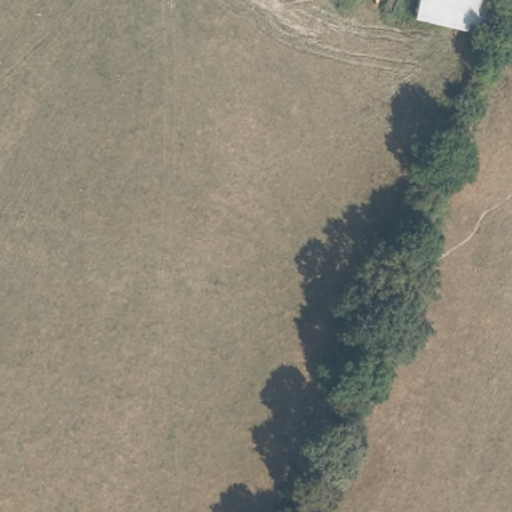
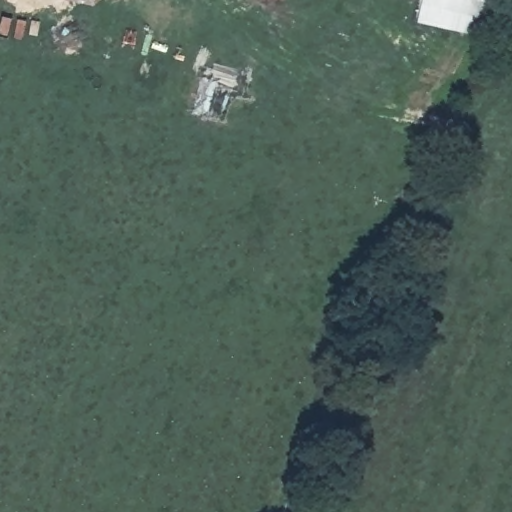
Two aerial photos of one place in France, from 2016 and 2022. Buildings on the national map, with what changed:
unchanged [(487,37),(413,24),(418,0),(494,0),(487,37)]

